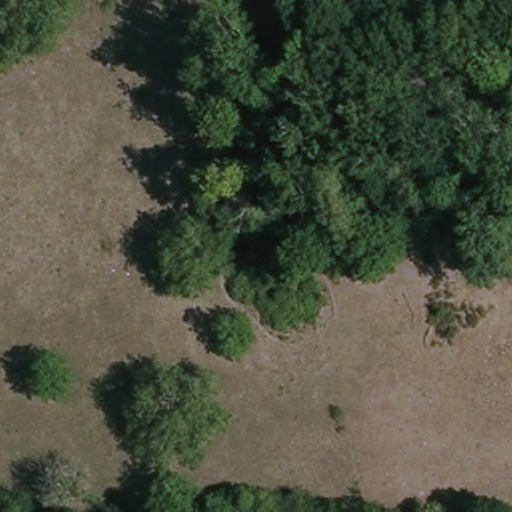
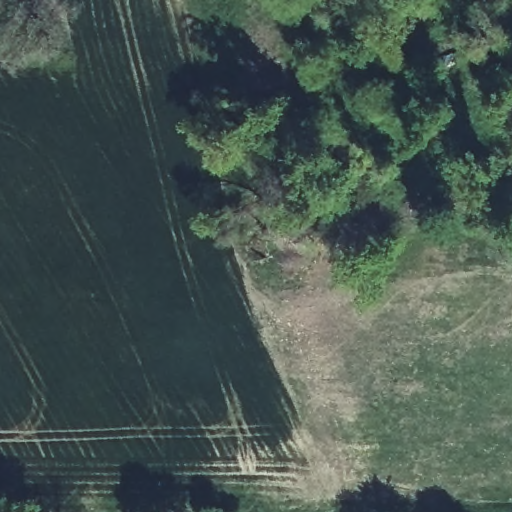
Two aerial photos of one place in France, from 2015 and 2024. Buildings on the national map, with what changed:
[]

